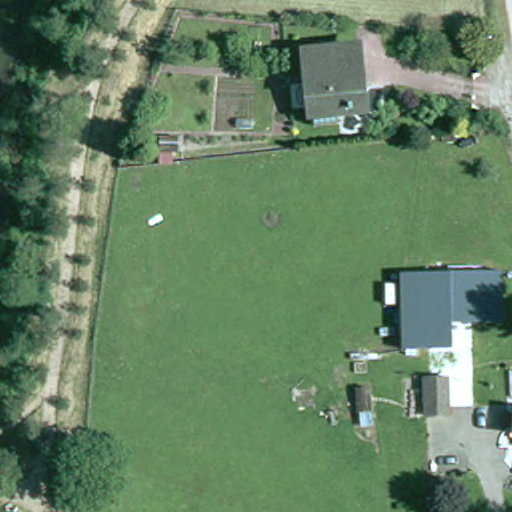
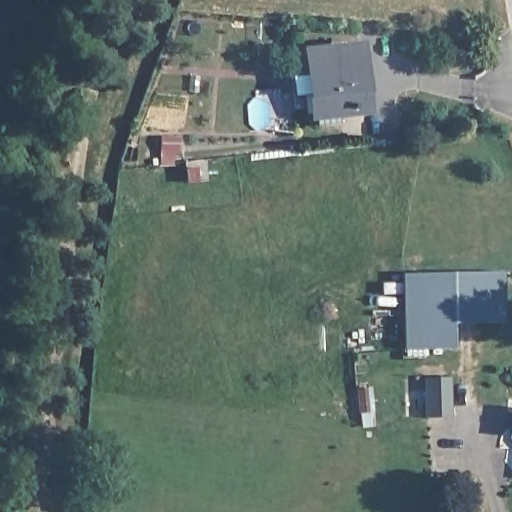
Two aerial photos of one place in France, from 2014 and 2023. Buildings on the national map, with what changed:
unchanged [(308,59),(363,54),(369,116),(323,121),(320,79),(310,81),(308,59)]
unchanged [(502,276),(503,325),(453,326),(453,351),(403,351),(404,277),(502,276)]
unchanged [(451,381),(452,414),(429,415),(428,381),(451,381)]

